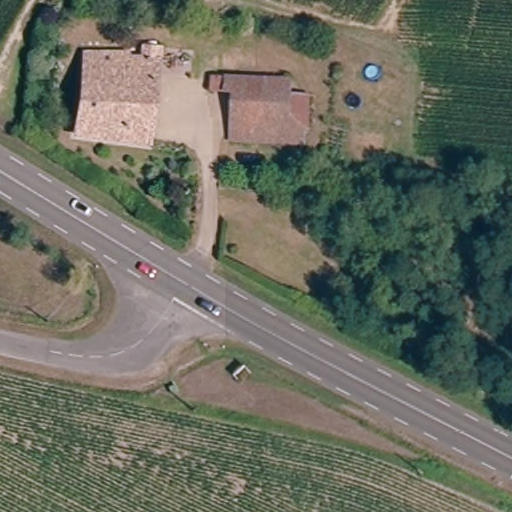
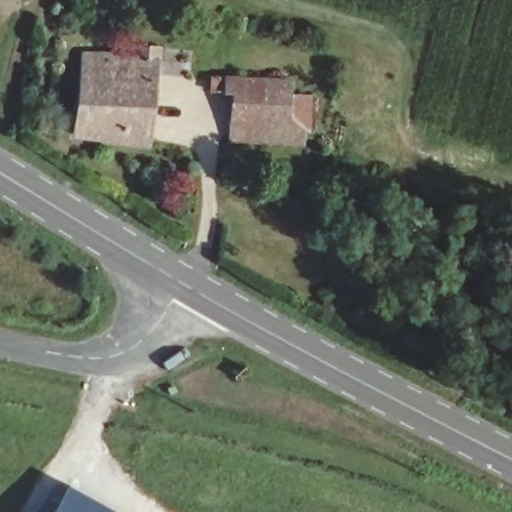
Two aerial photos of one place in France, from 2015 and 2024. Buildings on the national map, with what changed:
unchanged [(146,148),(75,139),(82,66),(135,73),(137,51),(155,52),(146,148)]
unchanged [(284,82),(284,90),(308,92),(305,125),(280,121),(277,164),(268,164),(268,150),(251,149),(254,131),(237,131),(238,94),(230,95),(231,77),(284,82)]
new [(66,484),(116,512),(51,512),(66,484)]

